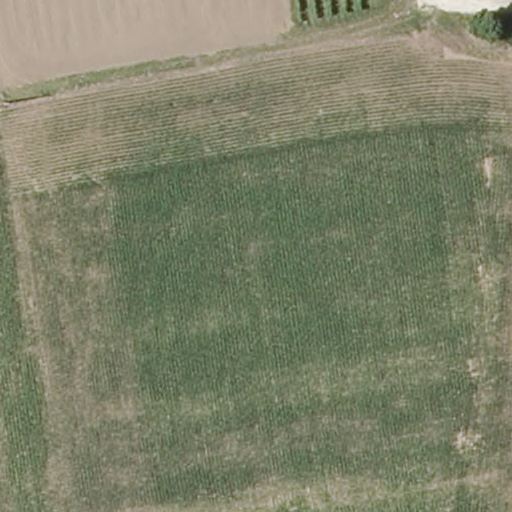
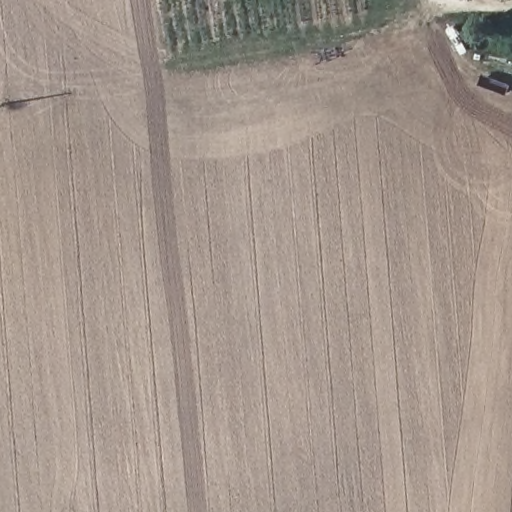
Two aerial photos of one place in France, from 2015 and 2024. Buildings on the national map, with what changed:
[]

